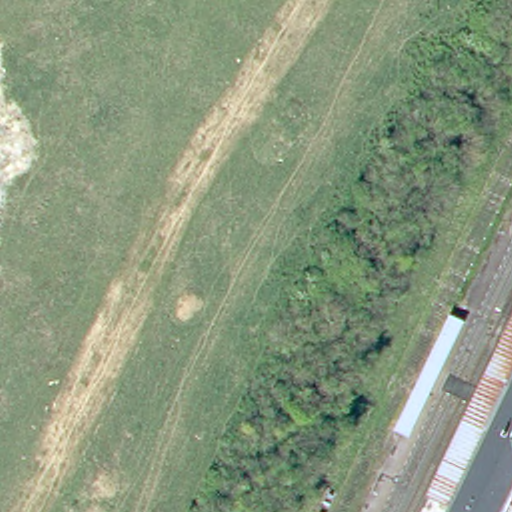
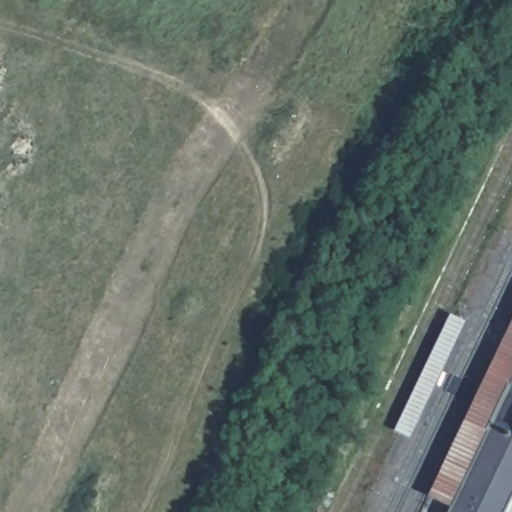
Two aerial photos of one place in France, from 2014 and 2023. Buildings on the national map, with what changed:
unchanged [(461,320),(408,436),(397,430),(452,316),(461,320)]
unchanged [(506,512),(447,512),(451,504),(430,493),(512,318),(512,500),(506,512)]

